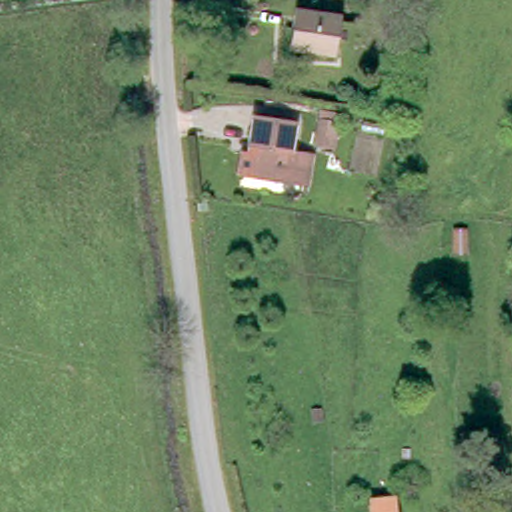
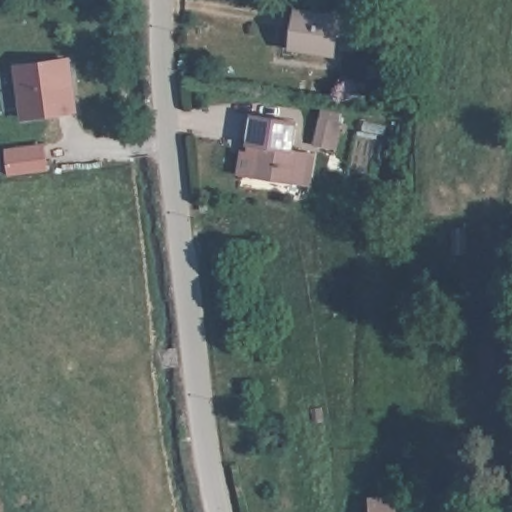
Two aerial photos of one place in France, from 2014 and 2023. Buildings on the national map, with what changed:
unchanged [(330,47),(295,40),(300,12),(334,18),(330,47)]
new [(78,111),(21,121),(13,65),(70,56),(78,111)]
unchanged [(292,180),(252,173),(257,146),(250,145),(257,111),(303,121),(292,180)]
unchanged [(395,499),(396,512),(374,512),(373,500),(395,499)]

